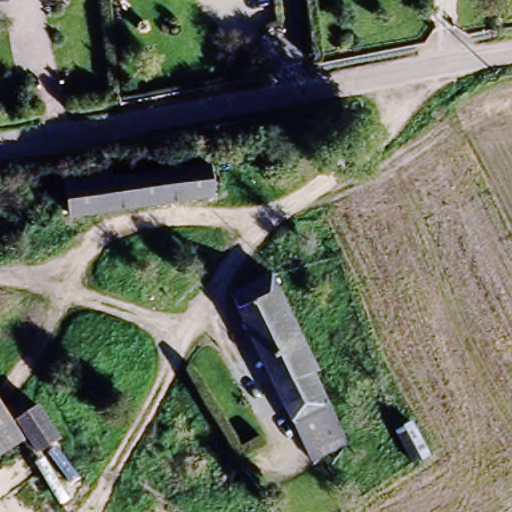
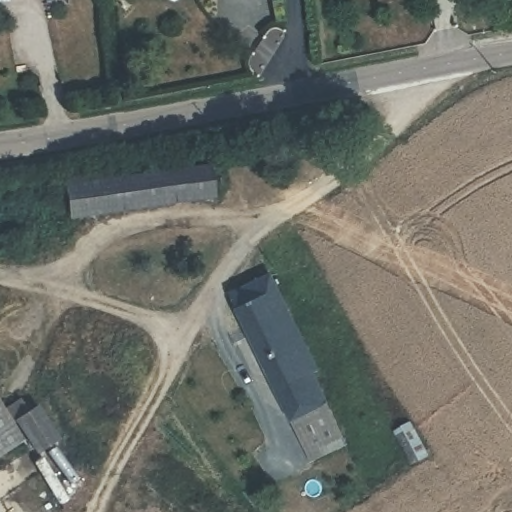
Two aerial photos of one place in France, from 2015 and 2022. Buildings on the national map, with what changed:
unchanged [(198,195),(68,221),(61,181),(93,175),(95,188),(193,169),(198,195)]
unchanged [(320,379),(317,380),(332,411),(324,415),(331,431),(305,443),(233,300),(271,280),(320,379)]
unchanged [(352,443),(315,462),(305,443),(331,431),(324,415),(332,411),(317,380),(320,379),(352,443)]
unchanged [(19,415),(26,409),(49,438),(29,454),(9,426),(3,431),(23,459),(8,470),(0,476),(0,406),(6,400),(19,415)]
unchanged [(395,434),(413,426),(427,453),(409,461),(395,434)]

